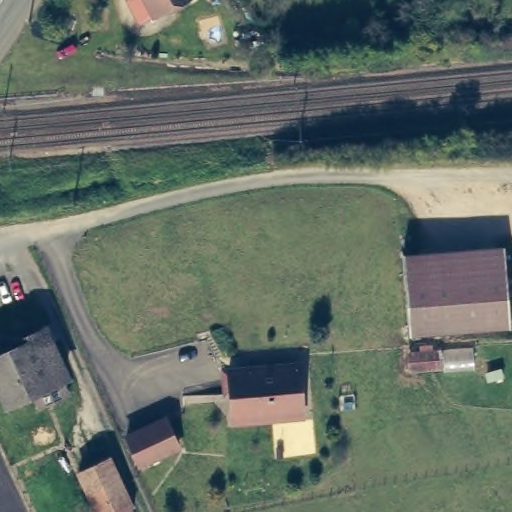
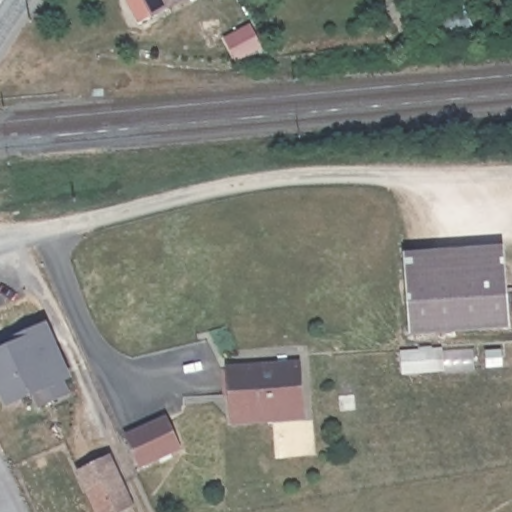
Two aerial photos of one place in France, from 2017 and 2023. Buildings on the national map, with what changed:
unchanged [(152,0),(174,0),(157,8),(152,0)]
unchanged [(404,254),(504,246),(505,265),(405,273),(404,254)]
unchanged [(505,265),(510,327),(410,335),(405,273),(505,265)]
unchanged [(0,349),(31,335),(29,331),(45,323),(69,370),(64,373),(70,388),(42,402),(34,387),(10,396),(0,375),(0,349)]
unchanged [(304,370),(307,417),(237,422),(234,375),(304,370)]
unchanged [(165,418),(179,448),(140,465),(127,436),(165,418)]
unchanged [(112,456),(133,507),(121,512),(95,512),(77,470),(112,456)]

